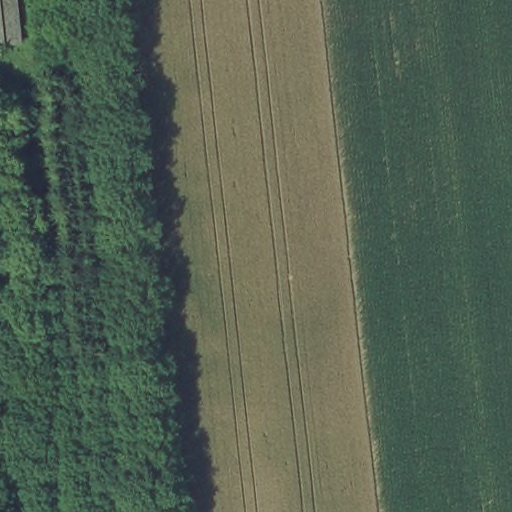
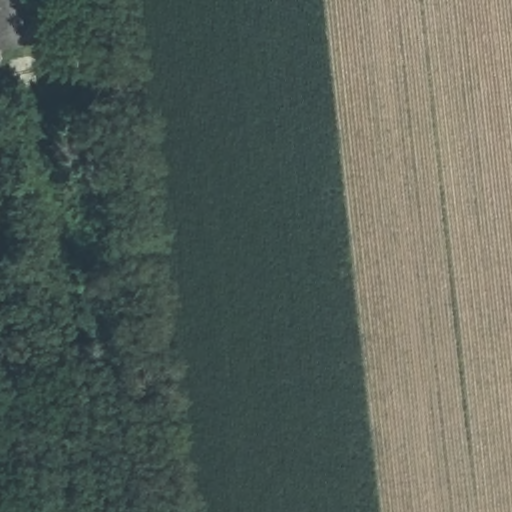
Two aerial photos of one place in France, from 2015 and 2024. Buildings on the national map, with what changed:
unchanged [(0,48),(0,0),(21,0),(27,47),(0,48)]

